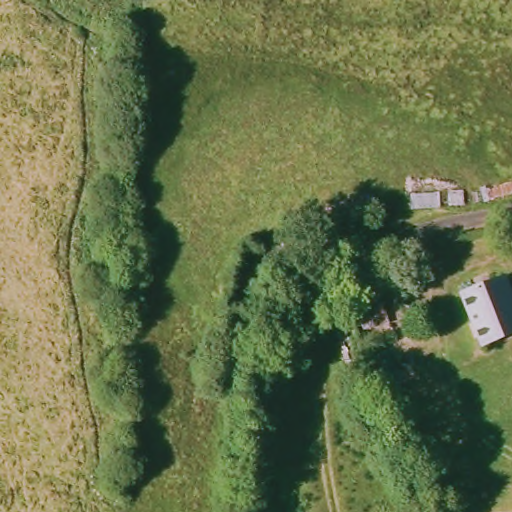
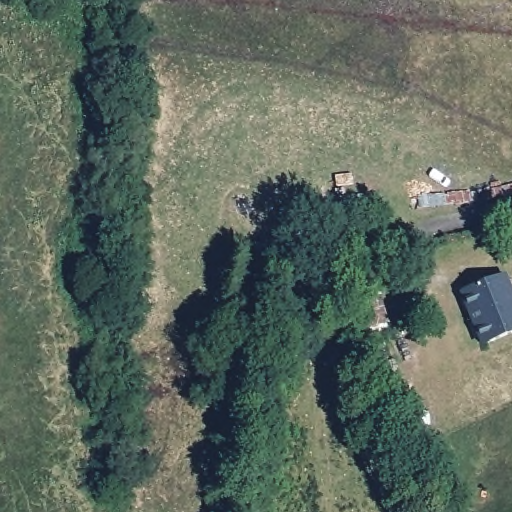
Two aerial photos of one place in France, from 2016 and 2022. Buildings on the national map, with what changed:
unchanged [(374,265),(387,307),(361,312),(350,276),(374,265)]
unchanged [(462,292),(505,275),(512,294),(512,332),(483,343),(462,292)]

